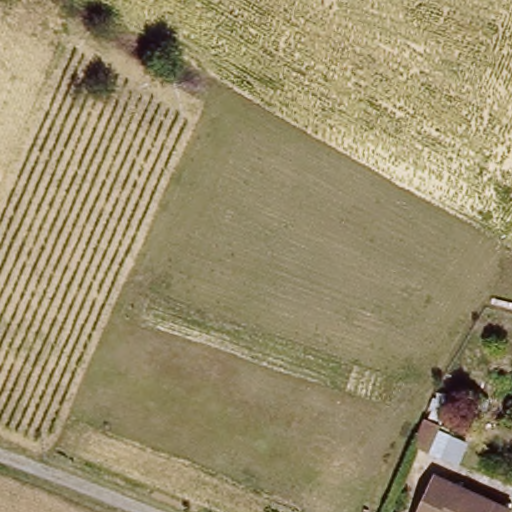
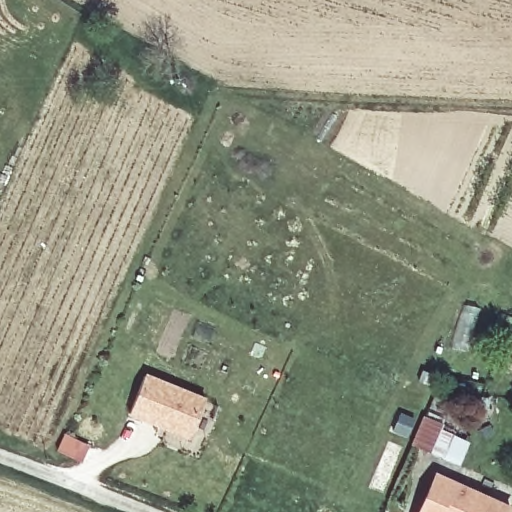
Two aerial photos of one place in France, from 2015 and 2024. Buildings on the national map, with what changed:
new [(512,342),(512,367),(504,364),(512,342)]
new [(145,373),(205,397),(189,438),(130,415),(145,373)]
unchanged [(431,408),(448,415),(434,440),(419,433),(431,408)]
unchanged [(413,512),(433,470),(512,503),(508,512),(413,512)]

